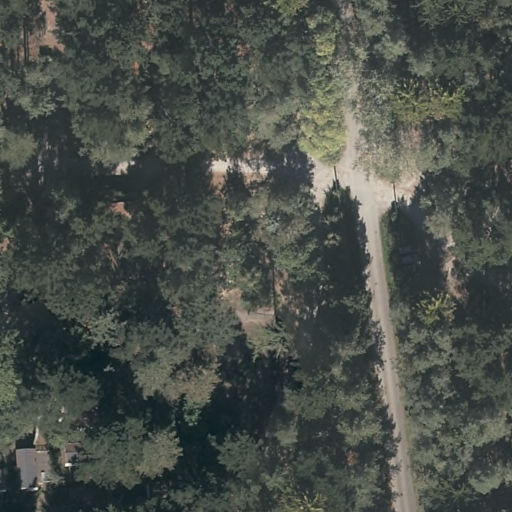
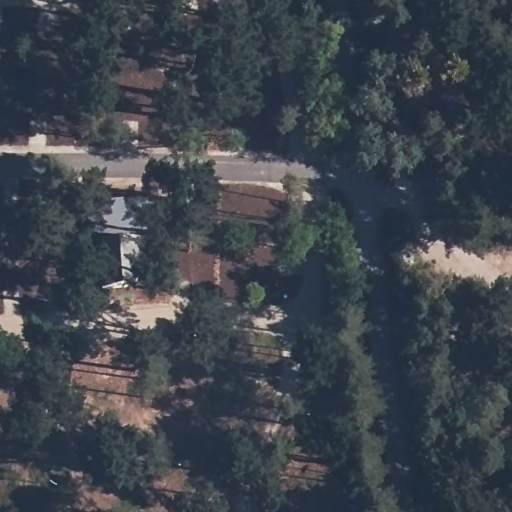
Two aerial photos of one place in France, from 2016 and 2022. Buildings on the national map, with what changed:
unchanged [(145,227),(135,229),(140,285),(100,290),(95,231),(87,232),(85,204),(142,200),(145,227)]

